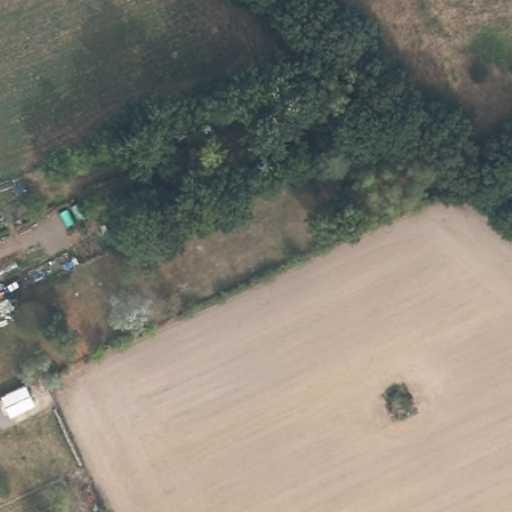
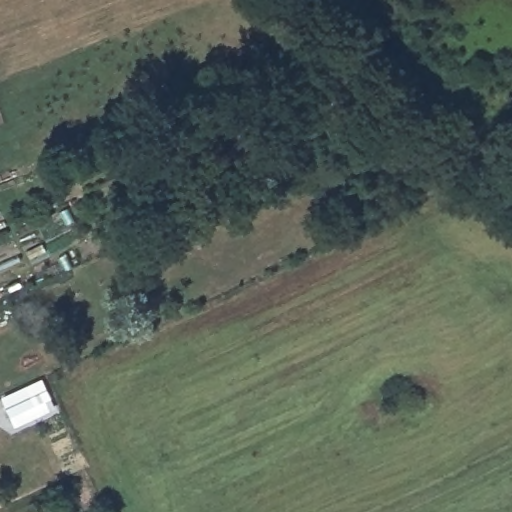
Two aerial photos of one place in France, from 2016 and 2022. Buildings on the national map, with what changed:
[]

